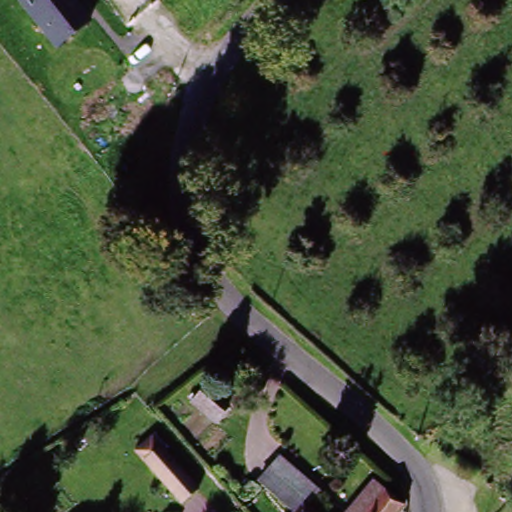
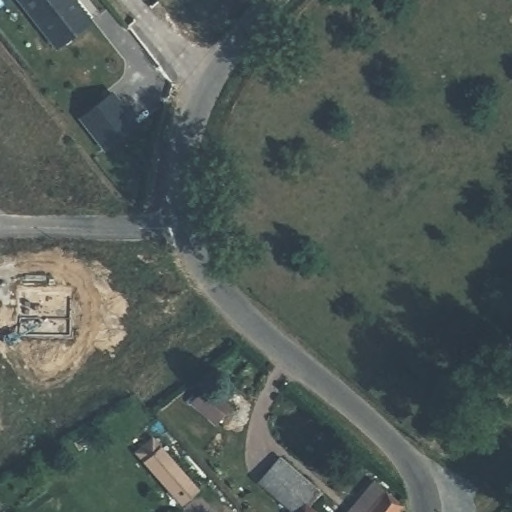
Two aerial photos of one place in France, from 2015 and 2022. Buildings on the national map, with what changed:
unchanged [(55,47),(20,0),(75,0),(91,20),(55,47)]
new [(105,150),(80,118),(112,92),(137,125),(105,150)]
unchanged [(222,402),(207,417),(183,392),(199,378),(222,402)]
unchanged [(165,457),(192,488),(175,504),(149,469),(165,457)]
unchanged [(266,477),(280,464),(306,493),(294,506),(266,477)]
unchanged [(370,495),(386,512),(352,512),(370,495)]
unchanged [(294,506),(300,512),(286,512),(294,506)]

